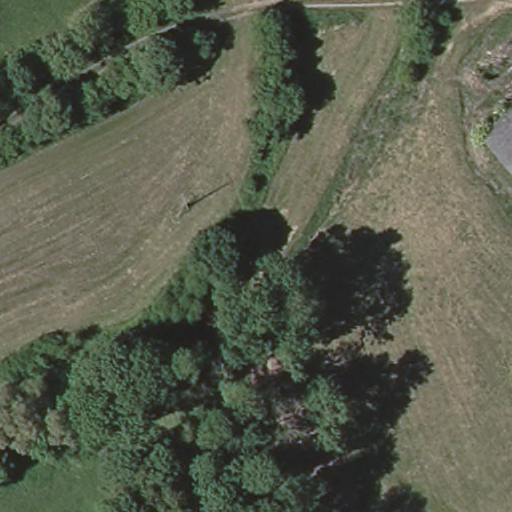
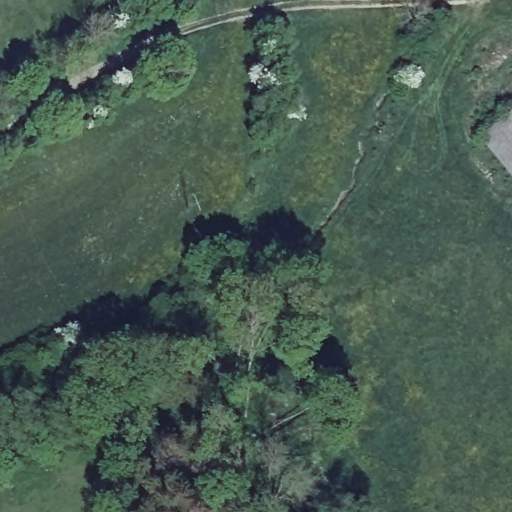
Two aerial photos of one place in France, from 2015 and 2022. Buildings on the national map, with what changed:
unchanged [(512,110),(512,181),(475,137),(512,110)]

